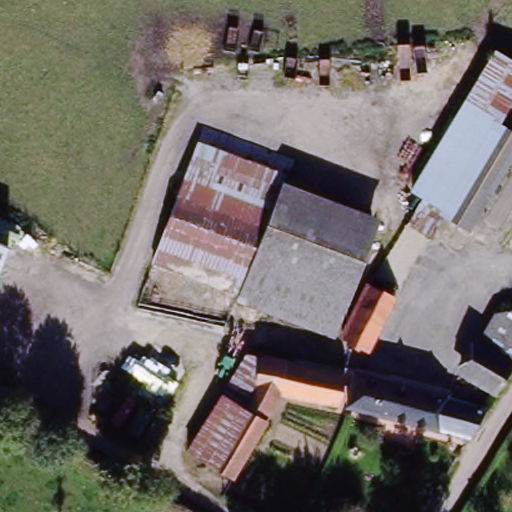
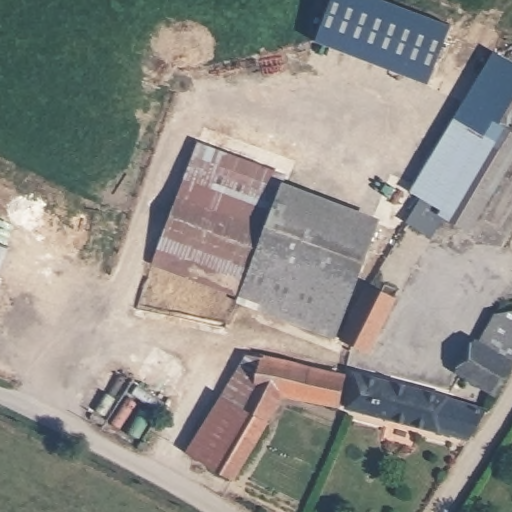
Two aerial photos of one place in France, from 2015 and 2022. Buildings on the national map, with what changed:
new [(428,83),(314,41),(330,0),(386,0),(450,24),(428,83)]
unchanged [(412,190),(494,49),(512,59),(512,103),(499,122),(512,130),(512,158),(472,221),(448,206),(431,233),(409,220),(421,199),(412,190)]
unchanged [(512,103),(512,130),(499,122),(512,103)]
unchanged [(336,341),(238,303),(241,298),(150,263),(199,141),(293,177),(291,185),(379,219),(336,341)]
new [(0,266),(0,244),(8,247),(0,266)]
unchanged [(372,351),(353,341),(380,290),(399,300),(372,351)]
unchanged [(507,300),(512,303),(512,362),(482,342),(507,300)]
unchanged [(288,393),(229,501),(209,490),(264,384),(274,356),(277,341),(365,365),(361,383),(351,411),(288,393)]
unchanged [(512,362),(512,365),(496,392),(463,372),(482,342),(512,362)]
unchanged [(360,407),(368,378),(455,402),(446,432),(360,407)]
unchanged [(494,415),(478,443),(446,432),(455,402),(494,415)]

